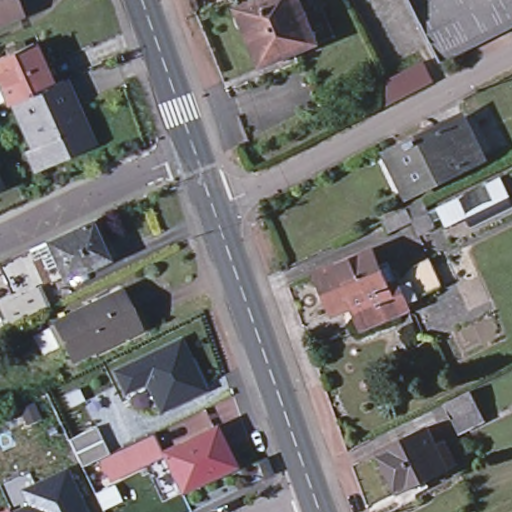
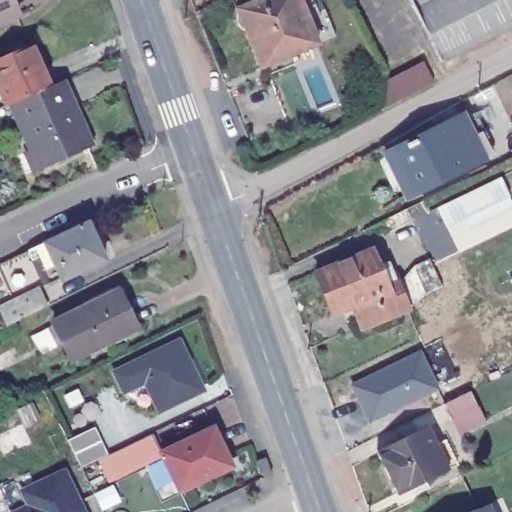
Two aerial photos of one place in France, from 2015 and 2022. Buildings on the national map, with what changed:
unchanged [(16,10),(0,16),(0,0),(12,0),(16,10)]
unchanged [(233,10),(235,9),(234,5),(246,0),(299,0),(315,39),(258,63),(243,27),(240,28),(236,24),(233,19),(233,10)]
unchanged [(422,30),(407,0),(512,0),(512,26),(438,63),(422,30)]
unchanged [(34,43),(53,82),(14,99),(7,102),(0,86),(0,57),(34,43)]
unchanged [(385,78),(422,61),(433,83),(386,105),(385,78)]
unchanged [(14,99),(53,82),(65,76),(92,137),(94,141),(43,163),(42,160),(14,99)]
unchanged [(384,152),(462,115),(467,119),(476,112),(492,145),(484,150),(487,161),(402,199),(384,152)]
unchanged [(508,194),(448,224),(440,207),(499,177),(508,194)]
unchanged [(2,187),(0,187),(0,182),(2,187)]
unchanged [(413,220),(389,231),(382,218),(407,206),(413,220)]
unchanged [(86,221),(101,258),(58,276),(43,239),(86,221)]
unchanged [(349,308),(329,317),(311,276),(368,251),(384,289),(392,285),(400,305),(403,311),(359,330),(357,326),(352,315),(349,308)]
unchanged [(426,260),(437,281),(415,293),(404,273),(426,260)]
unchanged [(61,350),(35,355),(28,338),(51,322),(50,316),(116,285),(134,330),(67,362),(61,350)]
unchanged [(44,305),(30,311),(4,324),(0,315),(0,303),(35,287),(44,305)]
unchanged [(187,358),(185,359),(199,390),(158,411),(133,361),(178,339),(187,358)]
new [(423,351),(441,391),(369,424),(352,386),(423,351)]
unchanged [(472,388),(479,405),(462,414),(452,418),(445,401),(472,388)]
unchanged [(425,424),(445,467),(394,491),(374,448),(425,424)]
unchanged [(164,452),(111,477),(102,458),(84,467),(71,439),(98,426),(112,453),(128,446),(156,432),(165,451),(164,452)]
unchanged [(216,427),(235,465),(183,490),(164,452),(165,451),(216,427)]
unchanged [(271,473),(262,477),(255,460),(264,456),(271,473)]
unchanged [(11,512),(41,499),(35,484),(63,469),(83,512),(11,512)]
new [(494,512),(473,512),(490,504),(494,512)]

